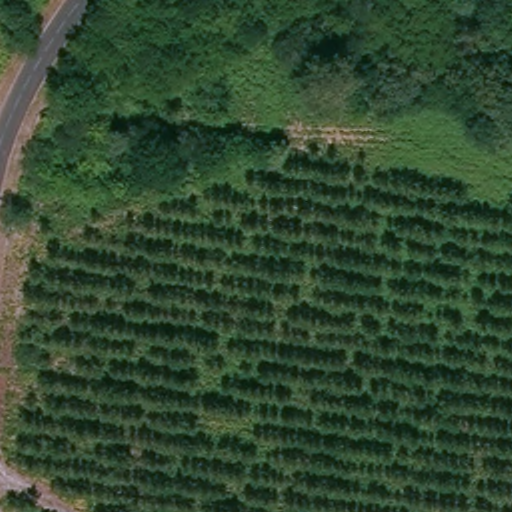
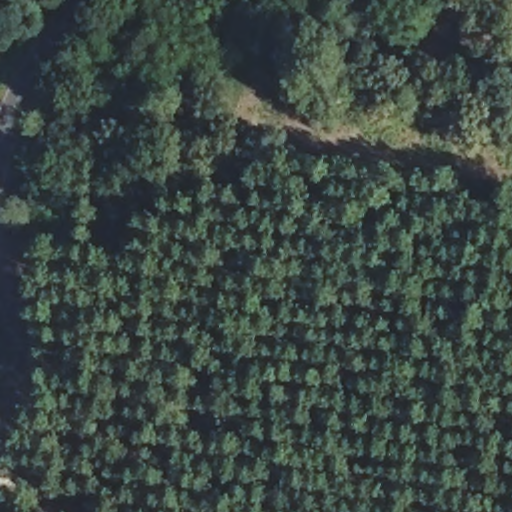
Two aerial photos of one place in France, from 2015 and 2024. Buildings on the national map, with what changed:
[]

